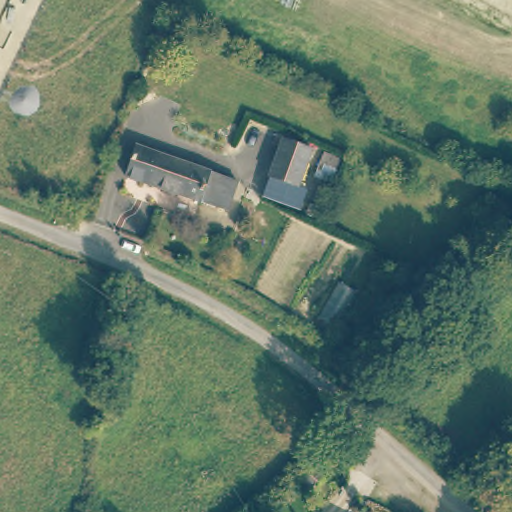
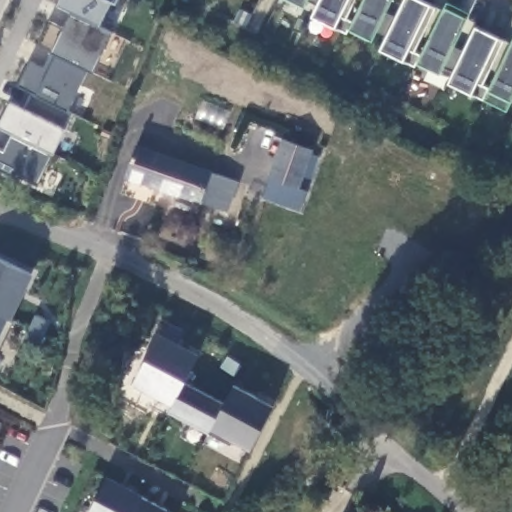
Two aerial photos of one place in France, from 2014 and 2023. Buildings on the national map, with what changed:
new [(118,0),(115,7),(110,4),(100,24),(57,4),(60,0),(118,0)]
new [(290,0),(307,0),(303,6),(290,0)]
new [(354,21),(365,0),(397,0),(391,12),(397,15),(405,0),(419,0),(428,4),(435,7),(414,50),(421,53),(445,7),(466,18),(455,43),(465,48),(475,27),(496,38),(502,40),(482,84),(490,88),(512,42),(512,100),(511,101),(506,109),(472,93),(449,82),(455,70),(443,65),(439,72),(417,61),(415,64),(403,58),(381,48),(387,36),(376,31),(372,40),(351,30),(350,32),(335,27),(312,16),(317,4),(308,0),(354,0),(345,17),(354,21)]
new [(30,62),(43,68),(50,52),(88,71),(69,111),(31,94),(17,86),(30,62)]
new [(65,128),(53,152),(39,183),(17,172),(15,175),(0,168),(0,147),(4,149),(12,132),(0,126),(0,123),(11,102),(26,109),(31,94),(71,112),(65,128)]
unchanged [(227,179),(219,210),(151,187),(119,175),(131,142),(227,179)]
unchanged [(305,156),(290,191),(267,183),(281,146),(305,156)]
unchanged [(261,200),(265,190),(303,206),(295,217),(261,200)]
new [(10,319),(14,321),(0,349),(0,258),(35,274),(10,319)]
new [(160,333),(198,355),(185,381),(223,402),(210,428),(171,408),(175,401),(134,380),(160,333)]
new [(223,402),(232,384),(274,404),(250,449),(210,428),(223,402)]
new [(106,476),(176,512),(88,512),(106,476)]

